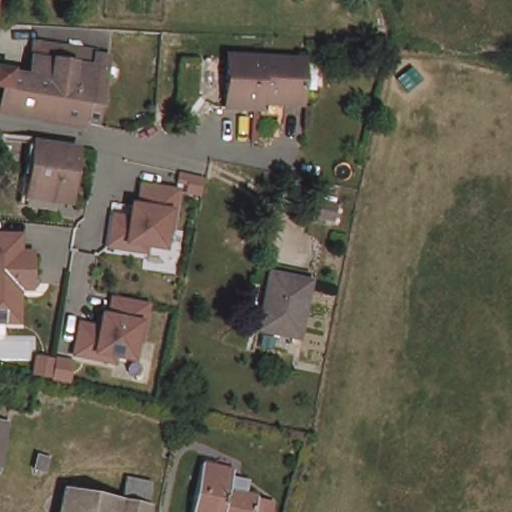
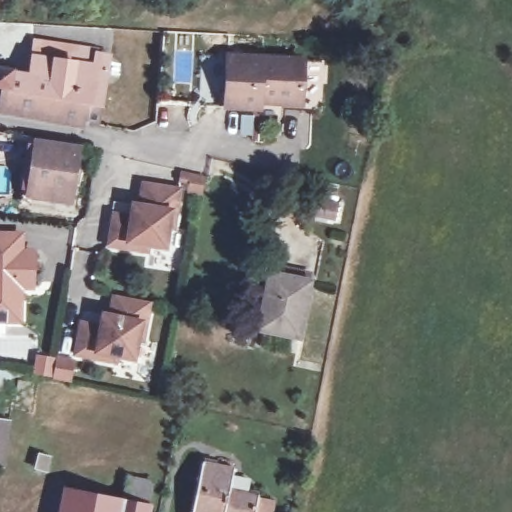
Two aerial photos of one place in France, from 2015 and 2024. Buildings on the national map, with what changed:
unchanged [(96,125),(83,122),(82,129),(0,113),(0,99),(1,94),(0,94),(0,72),(27,77),(33,42),(96,54),(95,61),(107,63),(96,125)]
unchanged [(222,55),(299,57),(298,101),(258,100),(259,107),(221,107),(222,55)]
unchanged [(78,150),(83,152),(85,152),(77,202),(56,199),(55,205),(33,202),(41,147),(78,150)]
unchanged [(177,230),(170,230),(169,254),(111,251),(115,213),(137,213),(140,184),(177,187),(177,230)]
unchanged [(22,292),(22,327),(0,327),(0,233),(25,234),(25,249),(35,249),(35,294),(22,292)]
unchanged [(271,270),(310,277),(300,333),(260,326),(271,270)]
unchanged [(138,367),(75,359),(80,322),(106,325),(109,297),(153,303),(138,367)]
unchanged [(33,377),(35,356),(73,361),(70,385),(33,377)]
unchanged [(12,417),(3,464),(0,463),(0,415),(12,417)]
unchanged [(250,492),(262,496),(258,512),(191,512),(203,461),(237,469),(237,475),(253,479),(250,492)]
unchanged [(69,486),(130,500),(127,512),(64,512),(69,486)]
unchanged [(130,500),(155,504),(153,512),(127,512),(130,500)]

